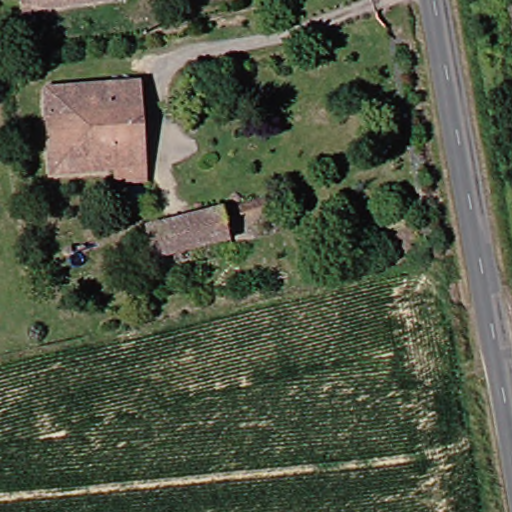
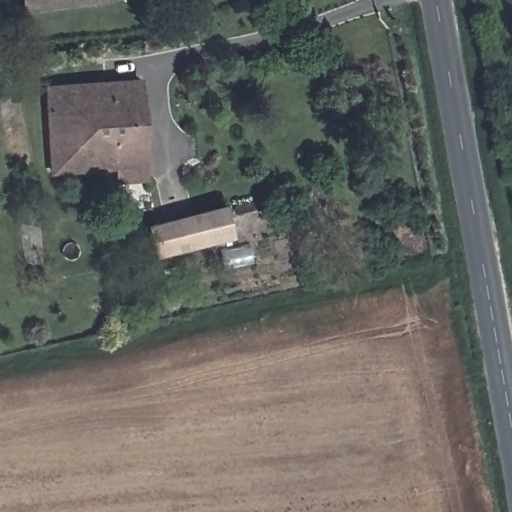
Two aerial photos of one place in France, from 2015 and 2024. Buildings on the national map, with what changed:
unchanged [(28,0),(66,0),(29,5),(28,0)]
unchanged [(123,178),(122,164),(56,165),(51,86),(143,81),(151,159),(153,175),(123,178)]
unchanged [(231,208),(236,240),(200,249),(198,242),(180,245),(181,254),(156,258),(148,224),(231,208)]

